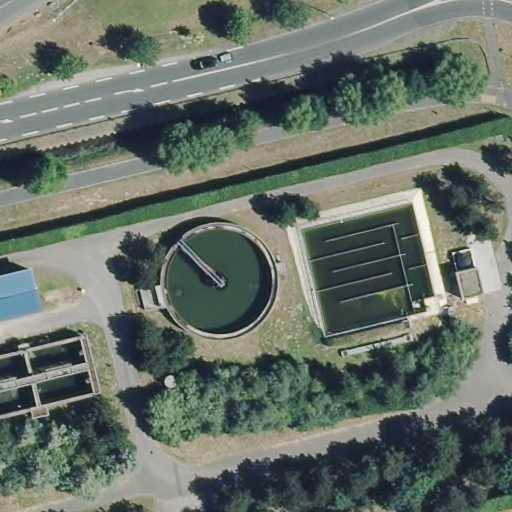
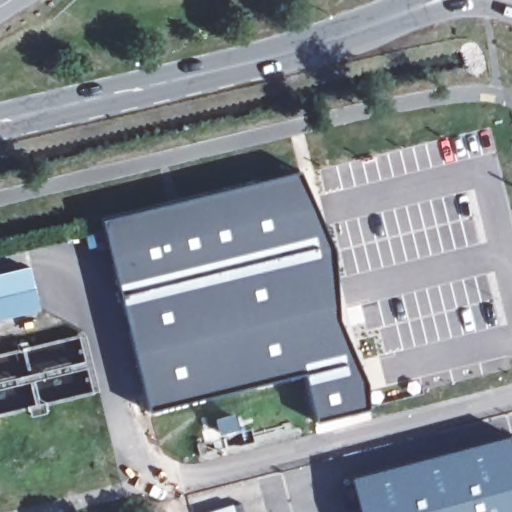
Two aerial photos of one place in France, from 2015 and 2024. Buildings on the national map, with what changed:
new [(315,174),(369,409),(317,418),(309,380),(147,415),(110,230),(315,174)]
demolished [(485,288),(464,292),(458,267),(480,262),(485,288)]
unchanged [(0,315),(0,275),(34,267),(43,305),(0,315)]
new [(349,483),(506,443),(512,467),(512,512),(356,512),(349,483)]

